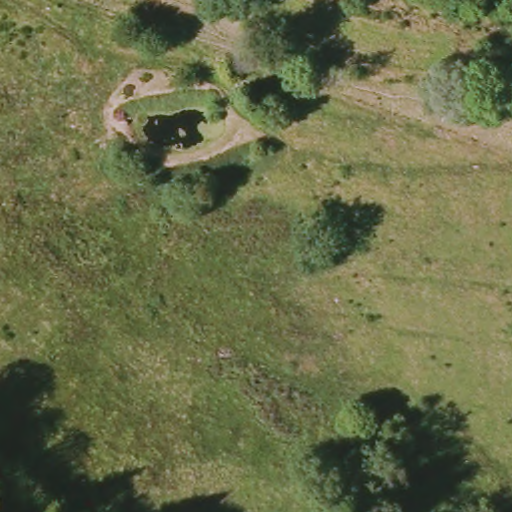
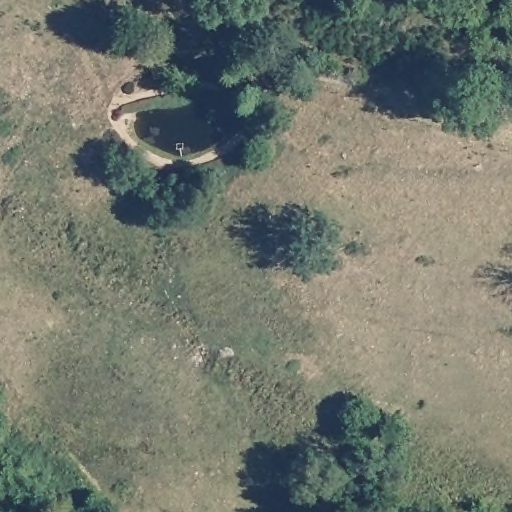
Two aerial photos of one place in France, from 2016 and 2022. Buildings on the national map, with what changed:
[]

